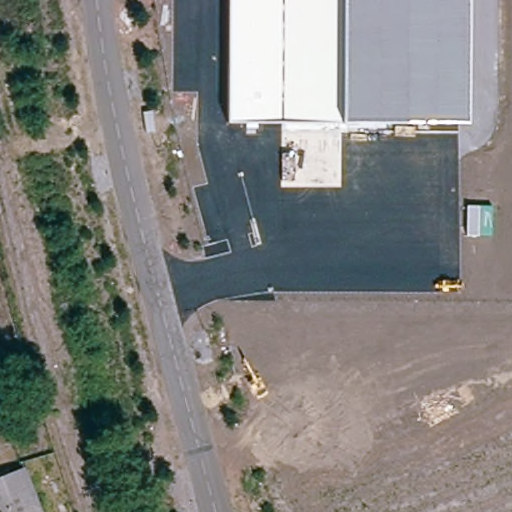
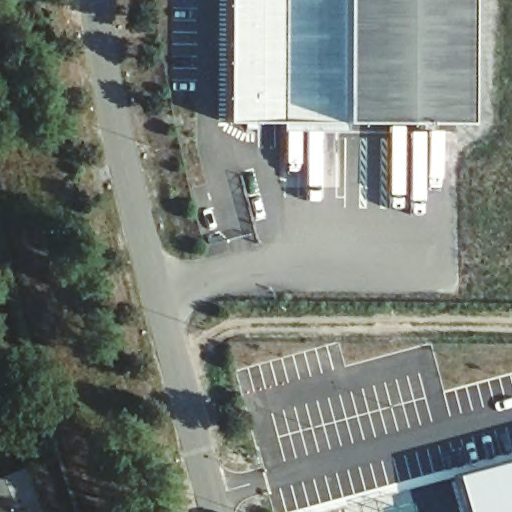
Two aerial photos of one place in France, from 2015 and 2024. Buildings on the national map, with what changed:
unchanged [(466,123),(341,121),(226,123),(228,0),(466,0),(466,123)]
new [(512,512),(462,512),(452,474),(512,457),(512,512)]
unchanged [(0,512),(0,482),(24,473),(39,512),(0,512)]

